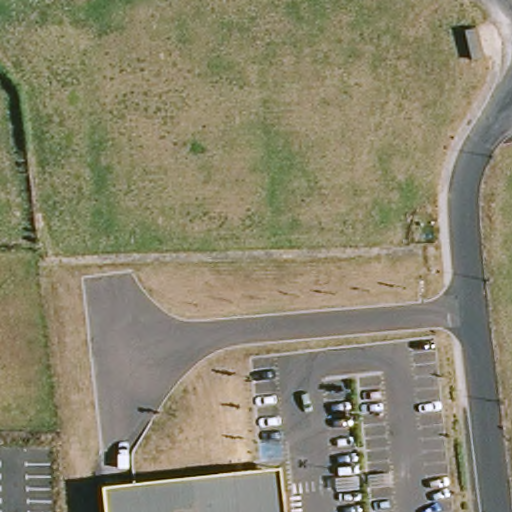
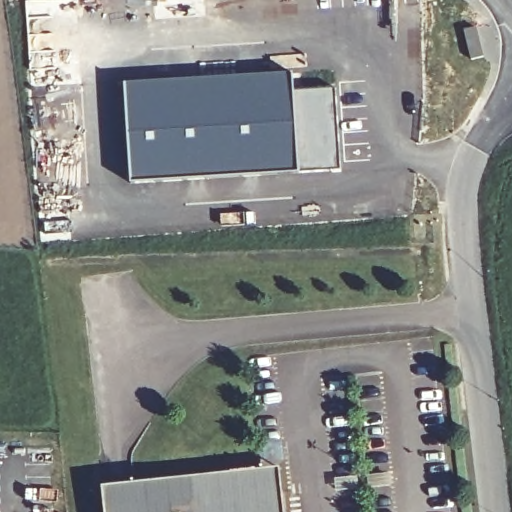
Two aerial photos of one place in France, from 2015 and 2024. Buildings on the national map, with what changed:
new [(292,71),(293,90),(298,173),(230,176),(130,183),(124,81),(292,71)]
new [(335,87),(343,171),(298,173),(293,90),(335,87)]
unchanged [(103,485),(282,466),(287,512),(105,512),(103,485)]

